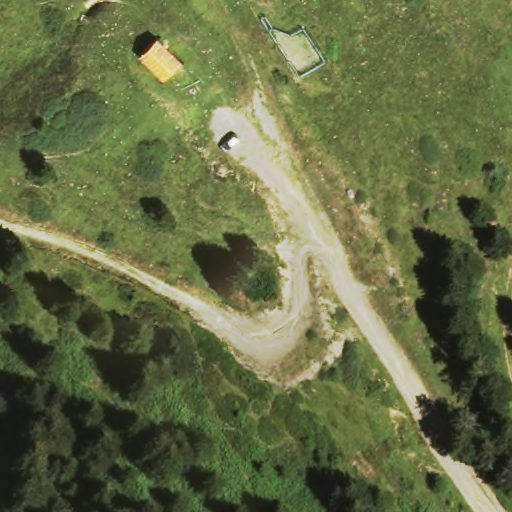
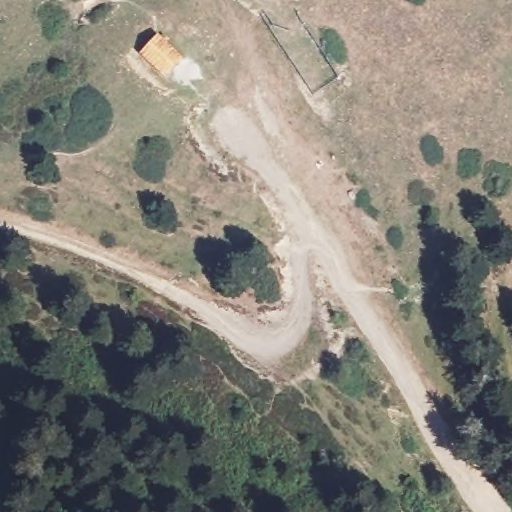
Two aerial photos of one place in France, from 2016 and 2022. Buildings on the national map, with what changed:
unchanged [(160,35),(186,59),(164,79),(141,54),(160,35)]

